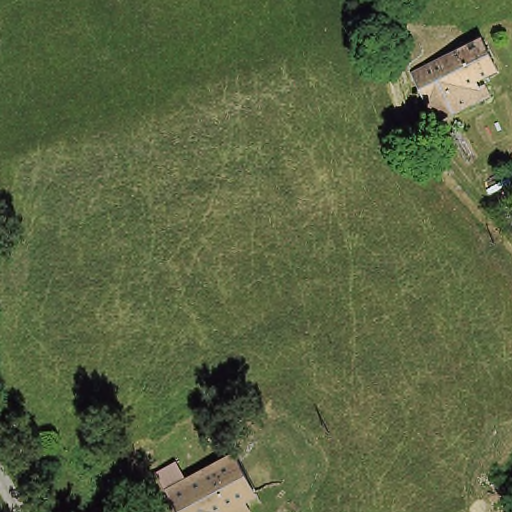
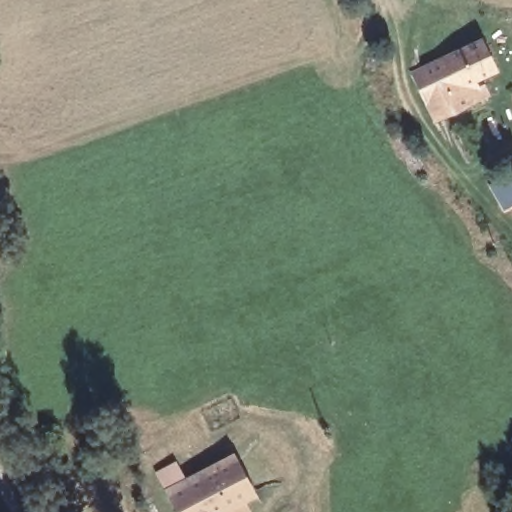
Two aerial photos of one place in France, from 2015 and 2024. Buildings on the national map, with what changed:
unchanged [(484,37),(498,67),(476,78),(480,87),(484,85),(488,93),(472,101),(449,54),(484,37)]
unchanged [(449,54),(472,101),(434,121),(409,73),(449,54)]
unchanged [(168,492),(156,471),(175,461),(186,482),(235,456),(254,491),(241,498),(246,507),(237,512),(179,512),(168,492)]

